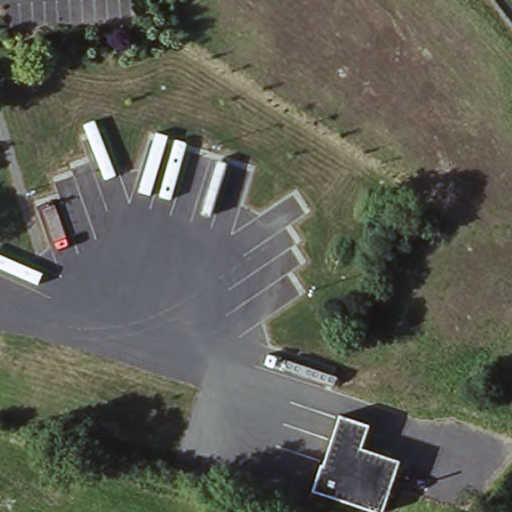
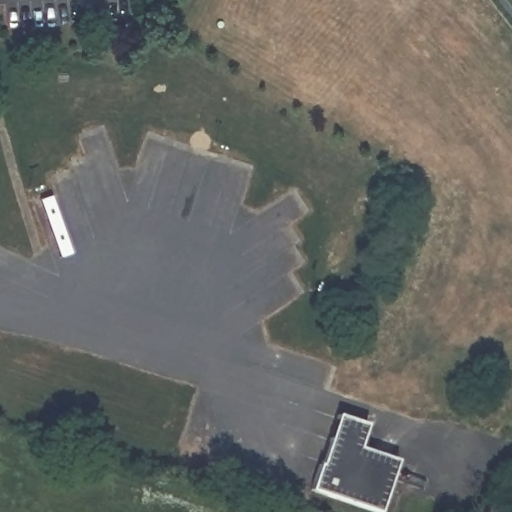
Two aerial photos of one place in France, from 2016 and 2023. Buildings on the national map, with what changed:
unchanged [(320,463),(323,465),(339,415),(368,425),(361,449),(400,461),(381,512),(376,512),(311,490),(320,463)]

